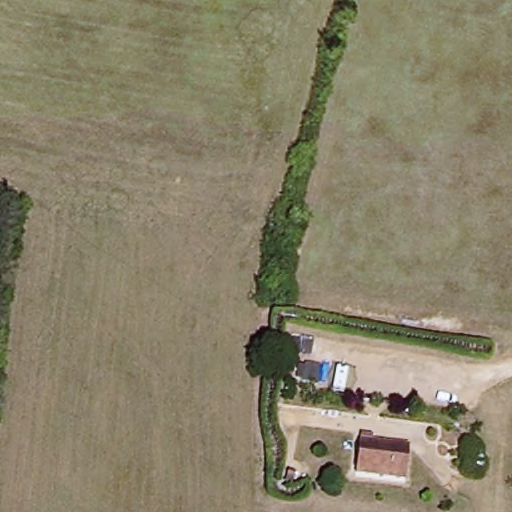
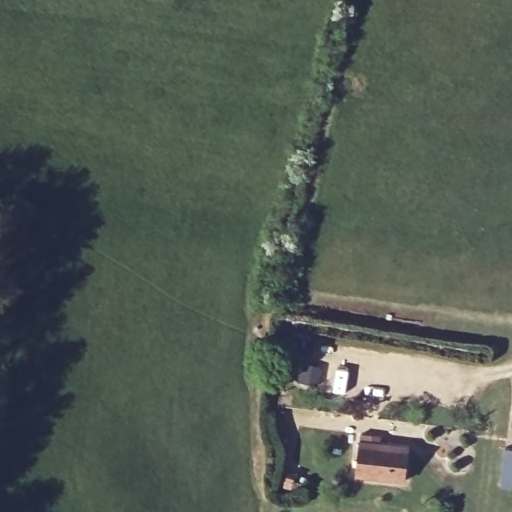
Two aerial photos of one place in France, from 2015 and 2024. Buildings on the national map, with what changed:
unchanged [(406,483),(355,477),(359,444),(410,449),(406,483)]
new [(502,448),(512,449),(512,487),(498,486),(502,448)]

